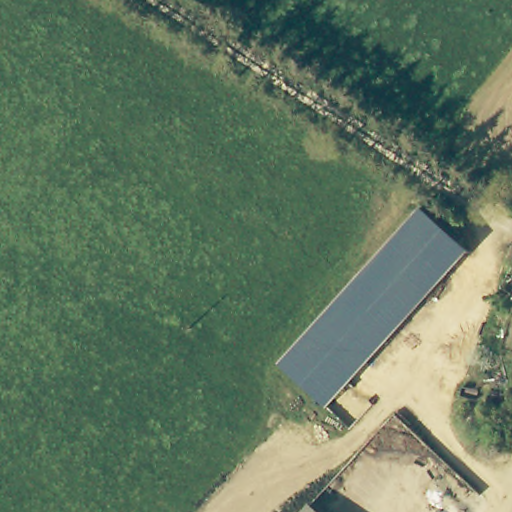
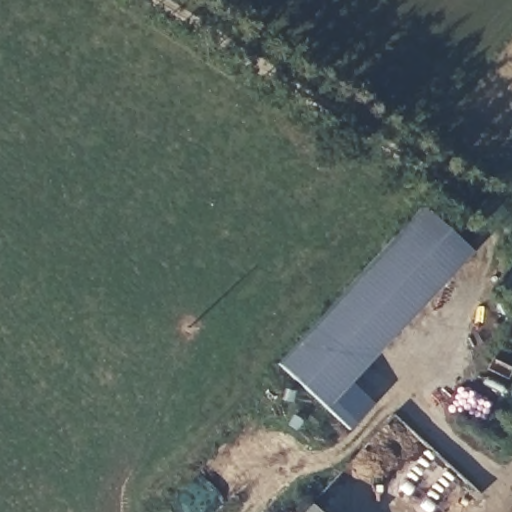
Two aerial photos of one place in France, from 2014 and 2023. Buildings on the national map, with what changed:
unchanged [(335,410),(287,366),(429,212),(476,255),(335,410)]
unchanged [(512,266),(512,295),(500,286),(512,266)]
unchanged [(318,512),(307,512),(313,507),(318,512)]

